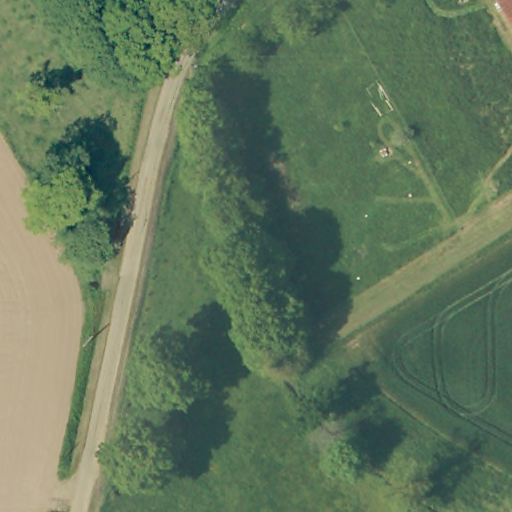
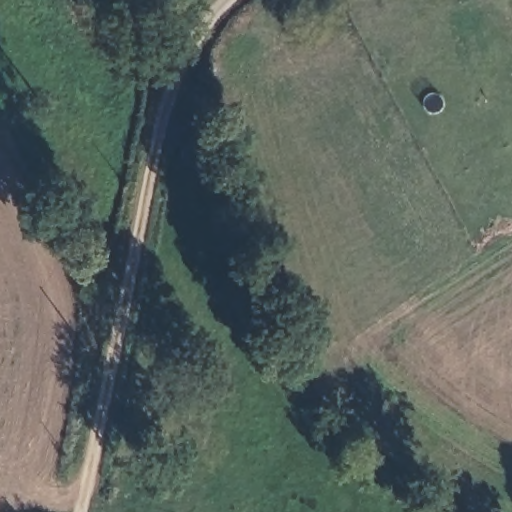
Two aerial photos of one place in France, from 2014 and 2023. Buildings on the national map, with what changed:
unchanged [(512,0),(512,19),(499,0),(512,0)]

